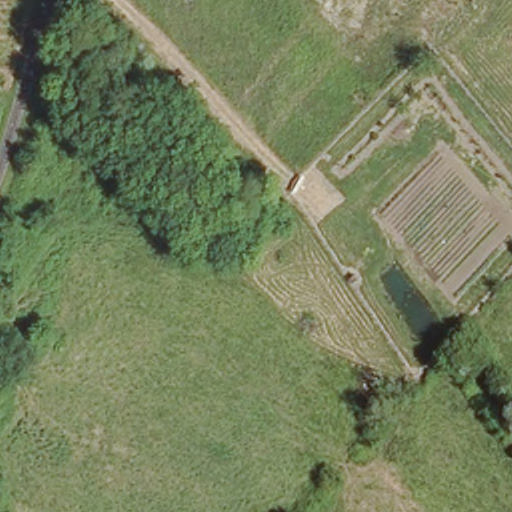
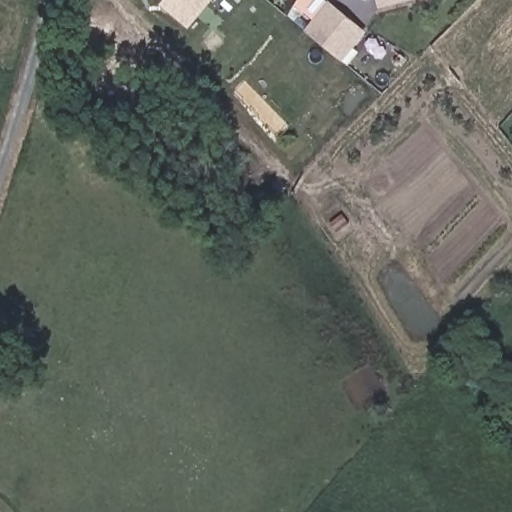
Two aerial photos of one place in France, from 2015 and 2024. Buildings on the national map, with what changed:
new [(178,2),(170,12),(162,5),(167,0),(176,0),(178,2)]
new [(188,27),(170,12),(178,2),(176,0),(211,0),(188,27)]
new [(342,61),(303,30),(328,0),(366,32),(342,61)]
new [(377,9),(375,0),(411,0),(377,9)]

